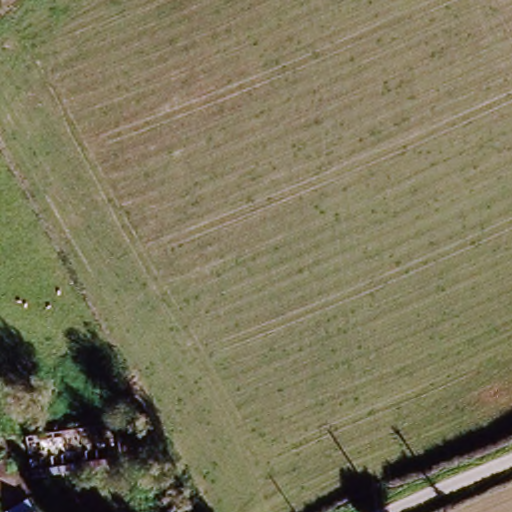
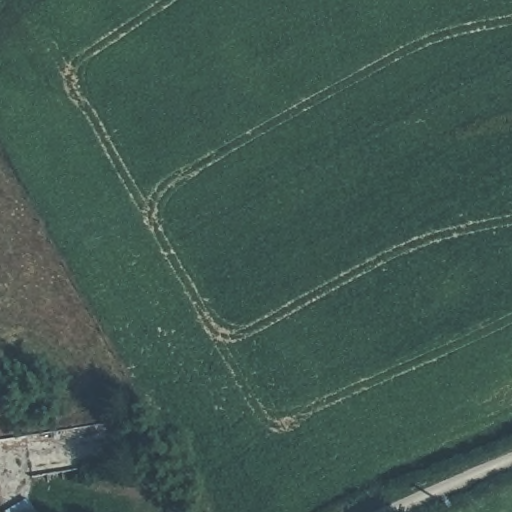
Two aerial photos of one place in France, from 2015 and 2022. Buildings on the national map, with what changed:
unchanged [(32,508),(34,512),(26,512),(32,508)]

